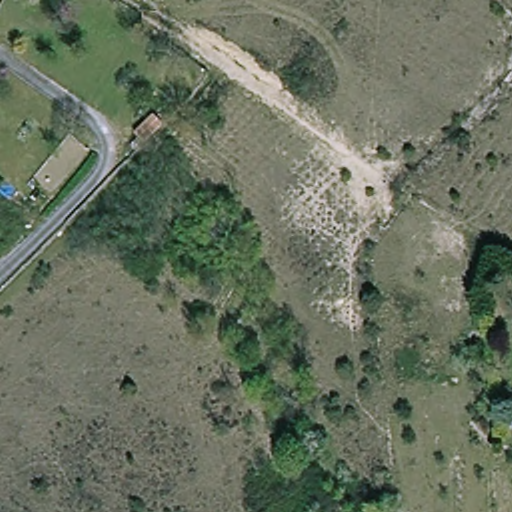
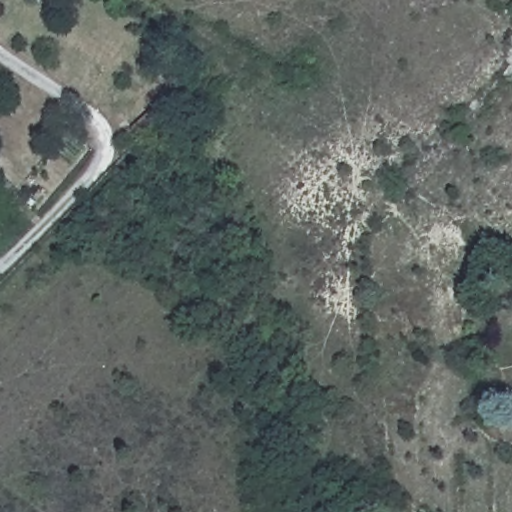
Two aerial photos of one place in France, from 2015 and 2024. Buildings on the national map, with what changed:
unchanged [(133,131),(152,113),(161,122),(143,141),(133,131)]

